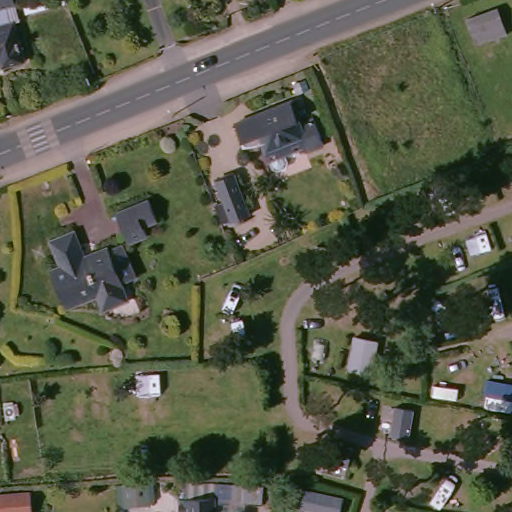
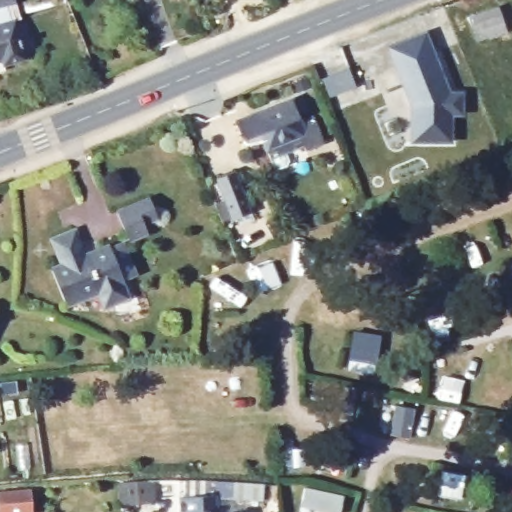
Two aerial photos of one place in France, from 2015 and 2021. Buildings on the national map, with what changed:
unchanged [(19,0),(22,10),(0,16),(0,0),(19,0)]
unchanged [(511,30),(495,36),(494,34),(481,37),(473,14),(502,5),(511,30)]
unchanged [(31,65),(10,71),(12,76),(0,79),(0,16),(22,10),(26,25),(21,26),(31,65)]
new [(425,31),(450,91),(463,92),(463,119),(451,118),(450,145),(409,145),(410,107),(388,48),(425,31)]
unchanged [(324,145),(305,153),(304,150),(270,163),(267,154),(266,155),(261,142),(257,144),(244,146),(235,122),(251,116),(290,100),(300,126),(315,120),(324,145)]
unchanged [(245,207),(227,214),(216,185),(234,178),(245,207)]
unchanged [(162,221),(149,226),(152,236),(134,243),(122,212),(154,200),(162,221)]
unchanged [(142,278),(128,284),(135,300),(111,310),(104,293),(71,307),(56,271),(65,268),(54,240),(80,229),(92,258),(115,249),(116,250),(129,245),(142,278)]
unchanged [(33,512),(0,512),(0,492),(32,490),(33,512)]
unchanged [(184,501),(222,499),(222,512),(185,512),(184,501)]

